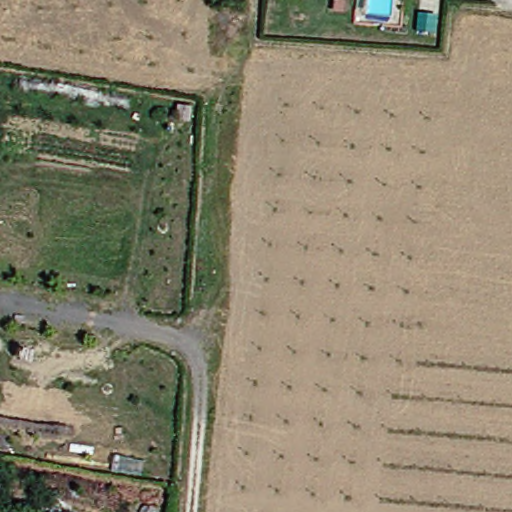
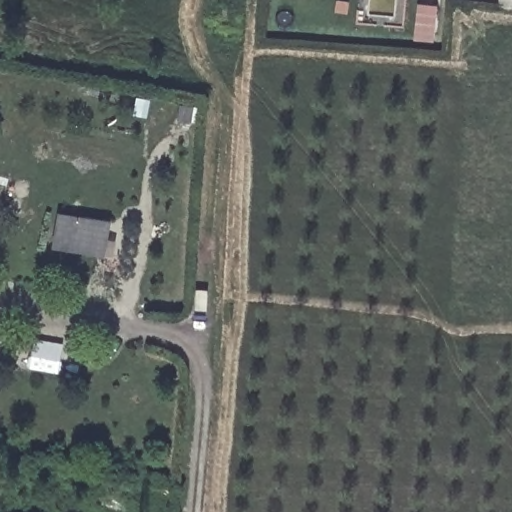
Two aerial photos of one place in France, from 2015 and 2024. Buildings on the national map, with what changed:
new [(112,222),(106,256),(53,246),(57,213),(112,222)]

